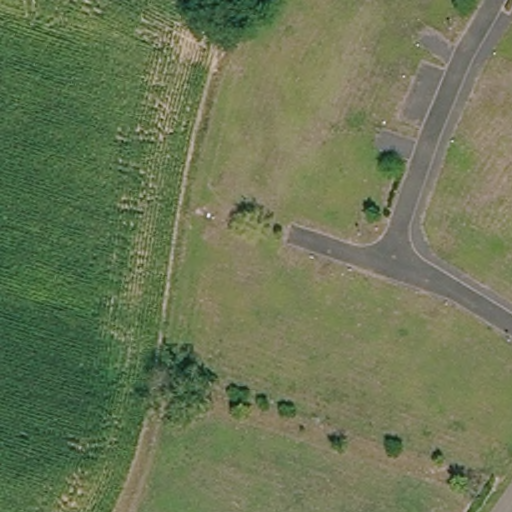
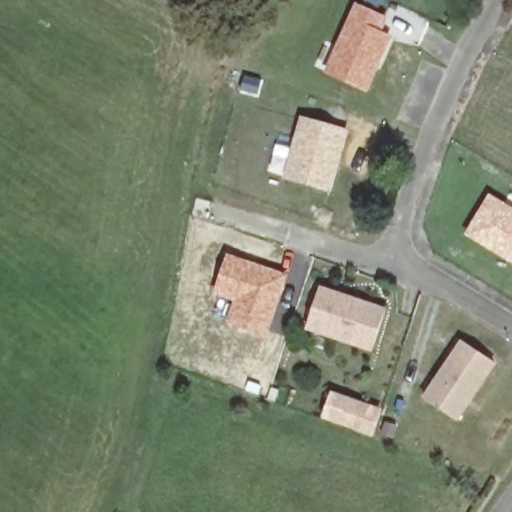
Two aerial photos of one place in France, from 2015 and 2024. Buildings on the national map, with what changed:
new [(356,1),(387,15),(381,30),(393,36),(368,93),(322,72),(356,1)]
new [(277,144),(290,147),(301,116),(350,130),(331,192),(268,171),(277,144)]
new [(489,193),(512,206),(512,263),(464,235),(489,193)]
new [(227,252),(288,274),(267,336),(226,322),(233,300),(212,293),(227,252)]
new [(372,350),(307,328),(321,285),(386,307),(372,350)]
new [(497,364),(459,420),(423,396),(461,340),(497,364)]
new [(332,390),(382,409),(372,436),(320,418),(332,390)]

